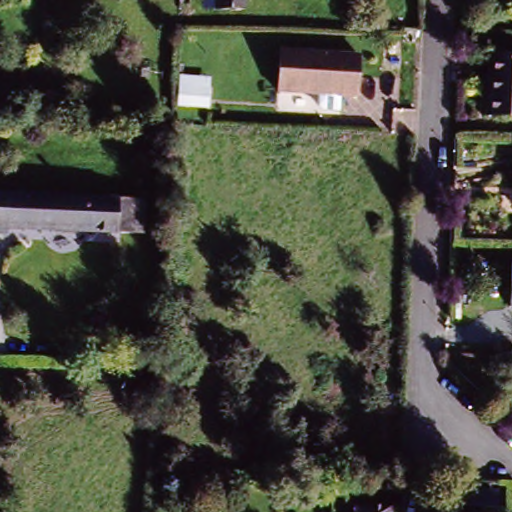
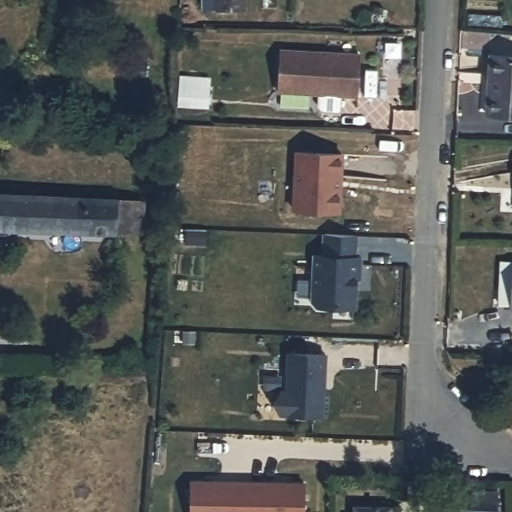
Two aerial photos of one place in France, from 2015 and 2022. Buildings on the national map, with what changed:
unchanged [(205,20),(202,0),(243,0),(245,12),(205,20)]
unchanged [(277,48),(354,56),(349,97),(272,89),(277,48)]
unchanged [(512,63),(512,118),(485,115),(492,60),(512,63)]
unchanged [(180,106),(182,75),(208,80),(210,110),(180,106)]
new [(342,150),(340,212),(290,209),(293,147),(342,150)]
unchanged [(510,161),(512,161),(512,178),(508,178),(510,161)]
unchanged [(0,228),(0,194),(142,198),(140,232),(0,228)]
unchanged [(512,209),(512,217),(511,217),(512,209)]
new [(356,232),(355,252),(361,253),(358,307),(312,306),(313,252),(318,252),(320,231),(356,232)]
demolished [(510,276),(512,276),(512,323),(506,322),(510,276)]
new [(323,351),(324,413),(277,411),(272,397),(278,387),(284,387),(285,349),(323,351)]
new [(190,480),(303,483),(303,512),(190,512),(190,480)]
new [(497,512),(451,512),(452,497),(497,500),(497,512)]
unchanged [(356,501),(386,502),(386,512),(356,512),(356,501)]

